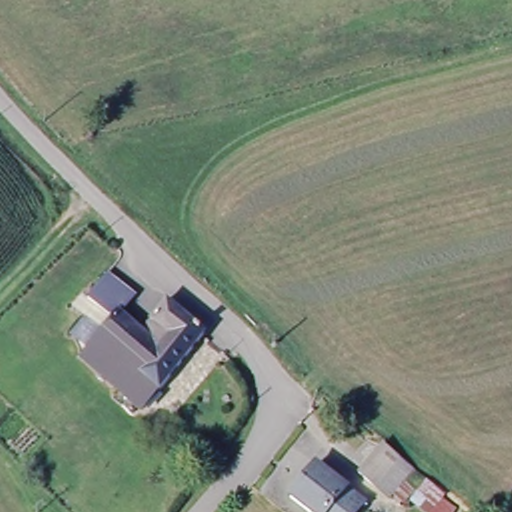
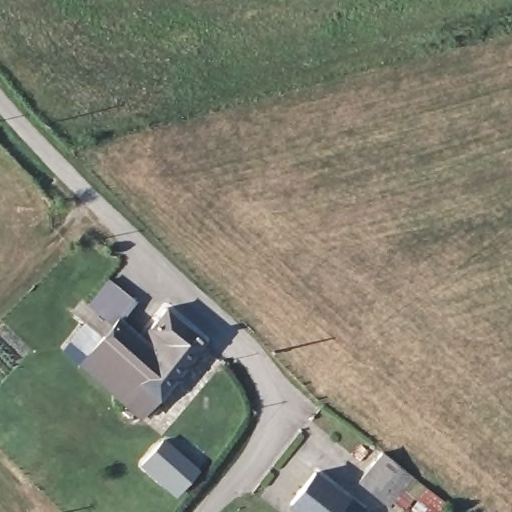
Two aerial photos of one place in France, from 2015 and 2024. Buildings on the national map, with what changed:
unchanged [(79,315),(112,284),(134,307),(121,316),(99,336),(79,315)]
unchanged [(120,411),(75,362),(99,336),(121,316),(130,325),(147,342),(174,317),(210,353),(160,403),(135,427),(120,411)]
new [(161,437),(195,470),(171,492),(139,462),(161,437)]
unchanged [(416,482),(391,505),(384,496),(377,503),(357,482),(384,452),(416,482)]
unchanged [(312,473),(356,512),(298,512),(285,502),(312,473)]

